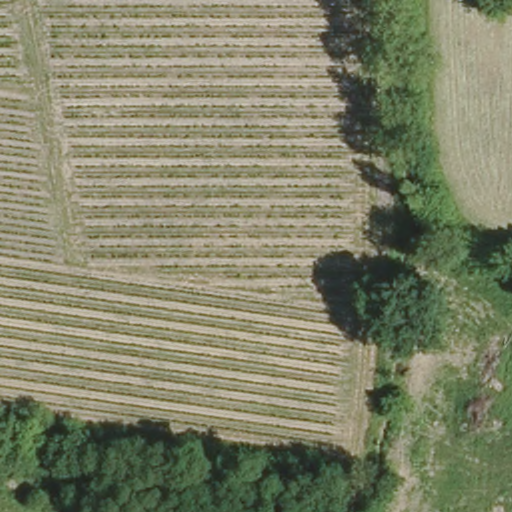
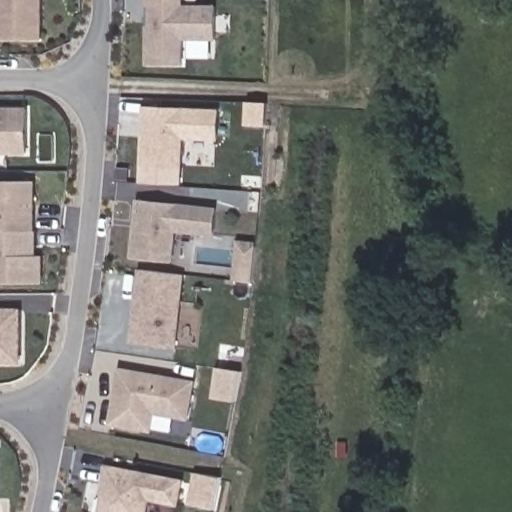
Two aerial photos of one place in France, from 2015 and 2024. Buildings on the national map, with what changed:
new [(42,40),(0,41),(0,0),(43,0),(43,40),(42,40)]
new [(182,65),(149,65),(149,0),(178,0),(178,6),(217,7),(217,38),(183,38),(182,65)]
new [(183,170),(141,167),(143,107),(220,110),(219,140),(184,140),(183,170)]
new [(28,154),(0,155),(0,108),(28,108),(28,154)]
new [(44,256),(44,282),(0,283),(0,182),(36,182),(36,256),(44,256)]
new [(174,263),(131,259),(137,199),(218,208),(214,236),(177,233),(174,263)]
new [(237,241),(253,243),(250,264),(249,279),(233,277),(234,262),(237,241)]
new [(130,342),(139,269),(185,274),(177,348),(130,342)]
new [(0,364),(0,308),(22,308),(23,363),(0,364)]
new [(217,368),(242,373),(238,392),(235,402),(212,397),(213,387),(217,368)]
new [(138,428),(109,423),(119,369),(194,381),(187,419),(154,413),(150,431),(138,428)]
new [(106,465),(184,480),(180,507),(150,501),(148,512),(98,512),(106,465)]

